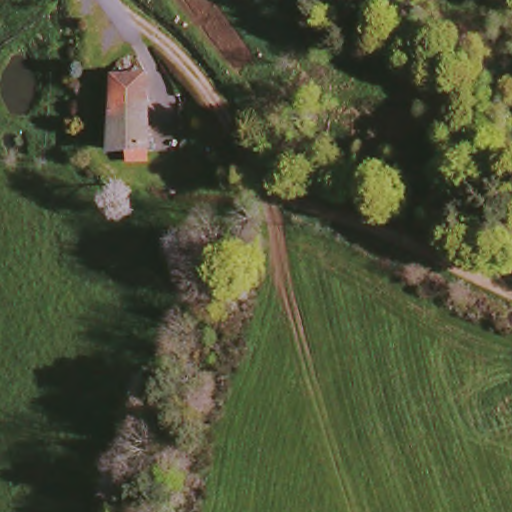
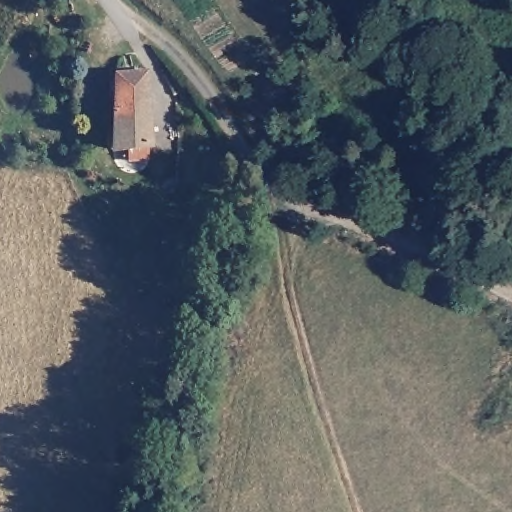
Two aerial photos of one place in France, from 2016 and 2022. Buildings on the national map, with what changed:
unchanged [(96,76),(145,76),(147,111),(97,111),(96,76)]
unchanged [(147,111),(149,154),(99,153),(97,111),(147,111)]

